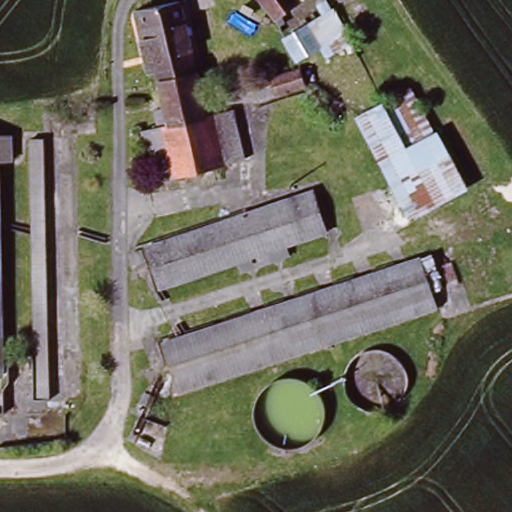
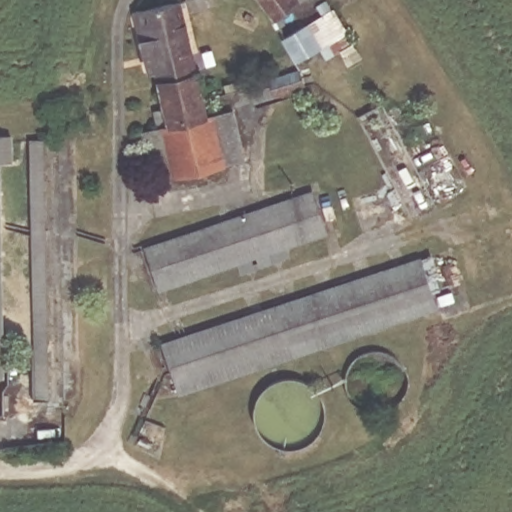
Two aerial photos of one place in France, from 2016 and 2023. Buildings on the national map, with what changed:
unchanged [(276,0),(301,0),(285,12),(276,0)]
unchanged [(191,8),(220,115),(250,106),(264,151),(170,177),(167,158),(163,140),(160,141),(158,129),(165,128),(162,114),(175,111),(165,70),(160,71),(153,73),(141,19),(152,17),(191,8)]
unchanged [(328,15),(340,37),(319,51),(305,31),(328,15)]
unchanged [(302,64),(307,78),(259,93),(255,79),(302,64)]
unchanged [(409,83),(431,119),(405,135),(383,99),(409,83)]
unchanged [(383,99),(405,135),(420,159),(446,144),(466,177),(413,209),(362,122),(358,114),(383,99)]
unchanged [(5,160),(0,160),(0,132),(4,132),(5,160)]
unchanged [(50,140),(60,393),(48,394),(37,141),(50,140)]
unchanged [(317,198),(330,235),(165,290),(152,252),(317,198)]
unchanged [(181,389),(165,338),(420,253),(439,305),(181,389)]
unchanged [(0,369),(0,312),(3,369),(0,369)]

